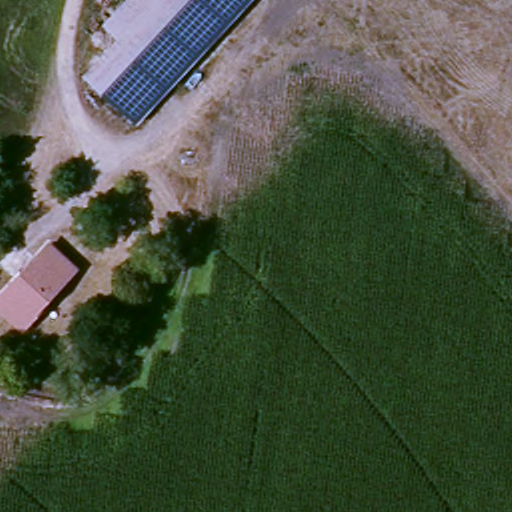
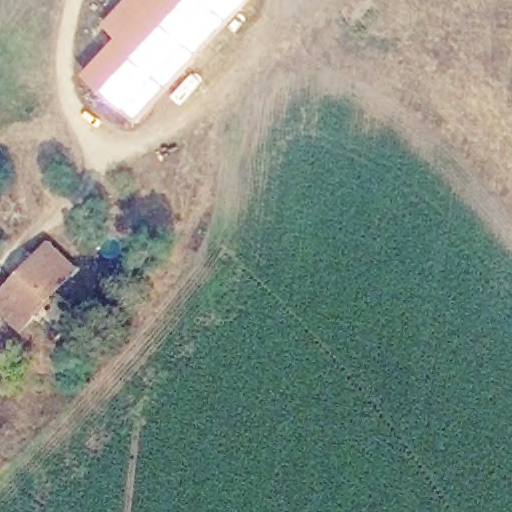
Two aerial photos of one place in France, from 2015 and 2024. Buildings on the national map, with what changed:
unchanged [(250,0),(140,120),(92,77),(125,41),(116,30),(144,0),(250,0)]
unchanged [(52,244),(77,267),(23,325),(0,305),(0,300),(52,244)]

